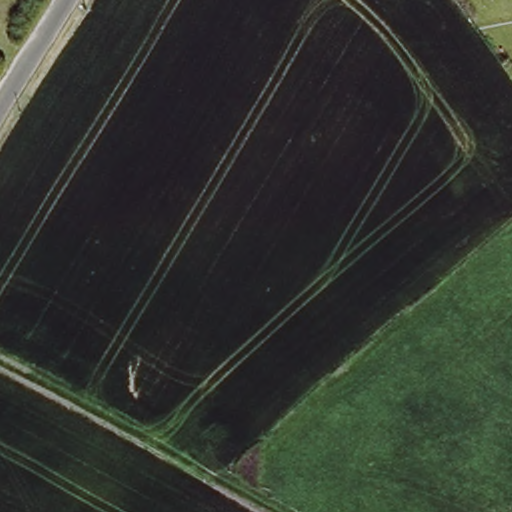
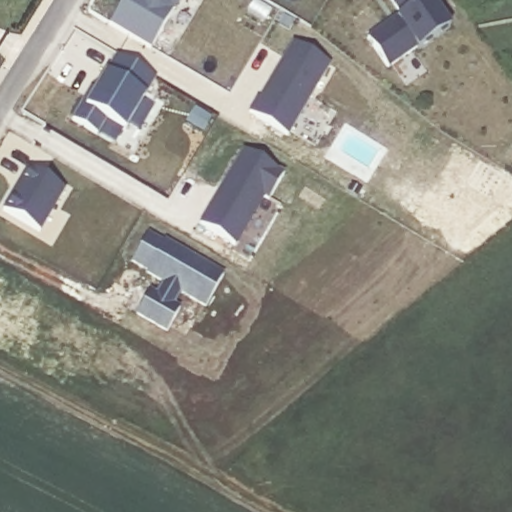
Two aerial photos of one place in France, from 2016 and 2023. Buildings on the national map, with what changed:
new [(123,0),(180,0),(150,50),(107,25),(123,0)]
new [(395,19),(397,17),(387,0),(429,0),(448,28),(415,50),(387,70),(365,37),(395,19)]
new [(256,97),(258,99),(292,42),(330,65),(287,137),(248,113),(256,97)]
new [(88,89),(92,92),(103,72),(103,71),(115,55),(152,79),(140,95),(144,96),(123,130),(105,119),(97,134),(70,119),(88,89)]
new [(242,151),(282,174),(266,200),(262,198),(235,246),(198,224),(242,151)]
new [(26,167),(64,190),(39,232),(1,210),(26,167)]
new [(147,234),(162,242),(163,240),(222,275),(203,307),(180,295),(174,305),(180,308),(165,333),(134,315),(148,288),(155,292),(160,284),(143,275),(145,272),(130,265),(147,234)]

